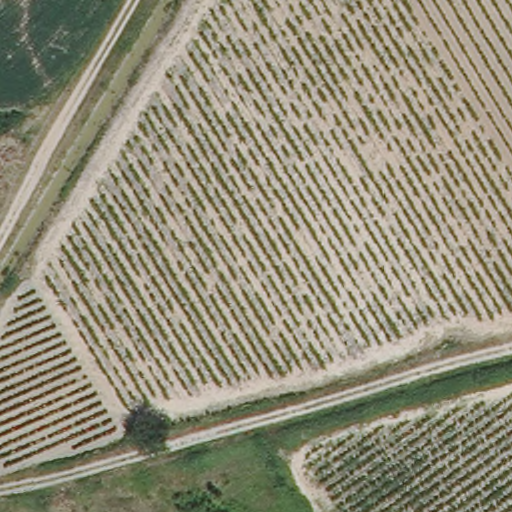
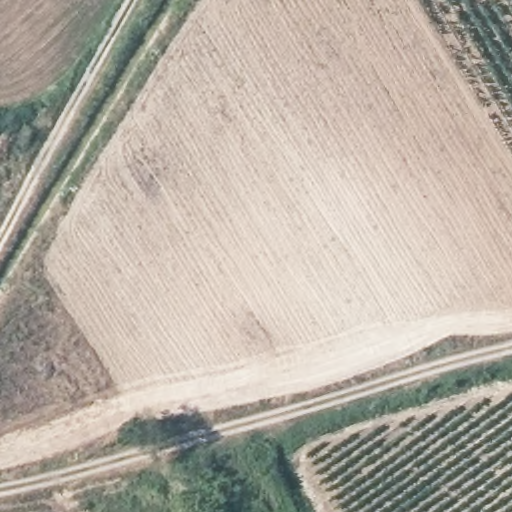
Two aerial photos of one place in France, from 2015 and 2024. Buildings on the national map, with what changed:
[]

